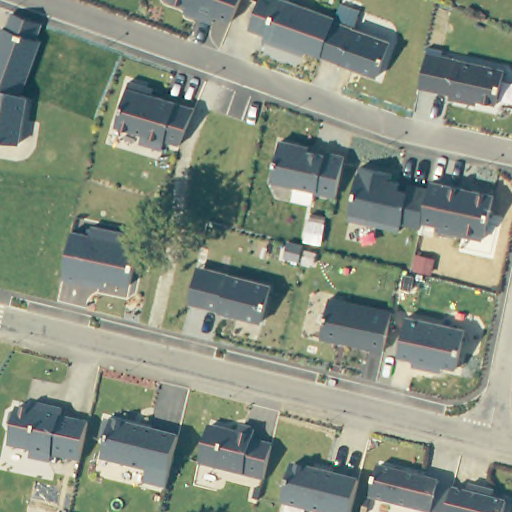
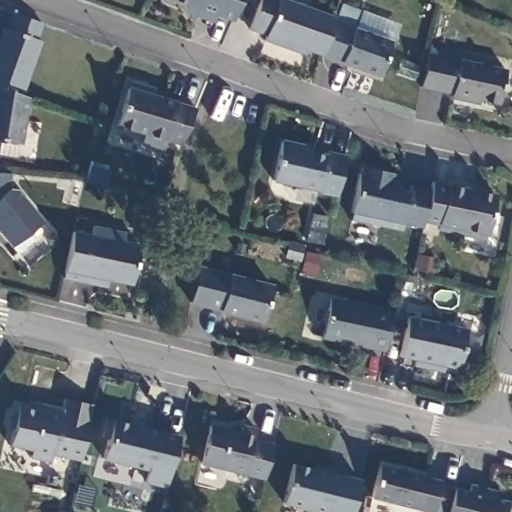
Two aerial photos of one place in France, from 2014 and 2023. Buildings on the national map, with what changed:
unchanged [(215,18),(213,23),(184,13),(187,5),(173,0),(240,0),(231,21),(215,18)]
unchanged [(307,51),(305,56),(262,41),(263,36),(248,31),(260,0),(289,0),(335,16),(341,3),(360,9),(355,28),(390,40),(376,76),(307,51)]
unchanged [(41,24),(36,40),(41,42),(22,96),(27,97),(20,143),(0,140),(0,26),(5,29),(11,14),(41,24)]
unchanged [(441,56),(503,69),(497,104),(478,101),(477,104),(450,99),(451,94),(420,88),(426,46),(442,49),(441,56)]
unchanged [(153,88),(151,94),(193,108),(180,145),(164,141),(161,149),(139,143),(140,134),(115,125),(130,80),(153,88)]
unchanged [(280,140),(345,154),(336,196),(270,181),(280,140)]
unchanged [(394,173),(392,180),(429,187),(430,182),(493,194),(483,240),(436,230),(436,225),(421,223),(420,228),(400,224),(399,231),(348,220),(360,166),(394,173)]
new [(9,172),(8,188),(16,189),(42,220),(27,230),(33,238),(14,253),(10,248),(0,236),(0,171),(9,172)]
unchanged [(140,235),(129,285),(105,280),(103,288),(60,279),(71,231),(90,234),(91,225),(140,235)]
unchanged [(270,285),(260,322),(186,303),(196,267),(270,285)]
unchanged [(383,351),(321,339),(330,298),(391,310),(383,351)]
unchanged [(465,329),(456,368),(441,366),(440,371),(412,365),(413,361),(397,357),(405,316),(465,329)]
unchanged [(10,429),(5,425),(8,414),(15,409),(25,409),(27,402),(61,409),(59,416),(87,421),(80,461),(52,456),(50,463),(29,458),(30,451),(7,446),(10,429)]
unchanged [(177,435),(164,488),(142,483),(146,471),(100,460),(112,417),(177,435)]
unchanged [(237,433),(240,425),(255,429),(252,439),(272,444),(263,479),(200,464),(209,424),(237,433)]
unchanged [(358,480),(350,512),(312,512),(281,505),(292,463),(358,480)]
unchanged [(438,481),(438,485),(465,492),(470,484),(495,490),(492,498),(506,502),(504,512),(428,512),(369,498),(378,466),(438,481)]

